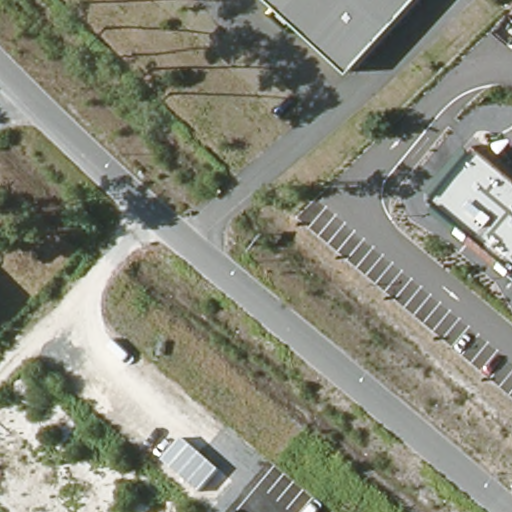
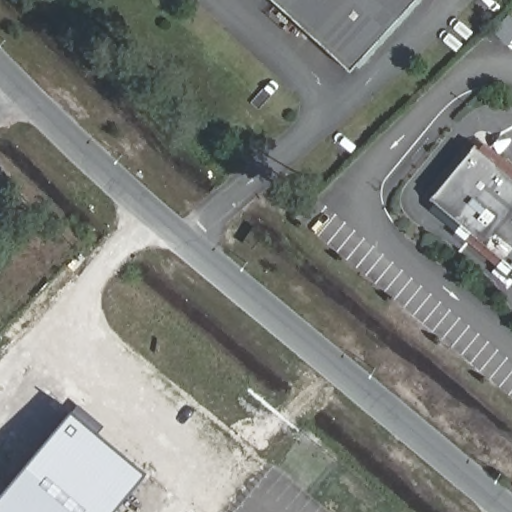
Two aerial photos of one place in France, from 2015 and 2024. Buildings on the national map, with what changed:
unchanged [(273,0),(418,0),(351,72),(273,0)]
unchanged [(436,203),(435,196),(477,147),(512,176),(512,269),(436,203)]
new [(0,497),(72,412),(146,473),(114,512),(0,512),(0,497)]

